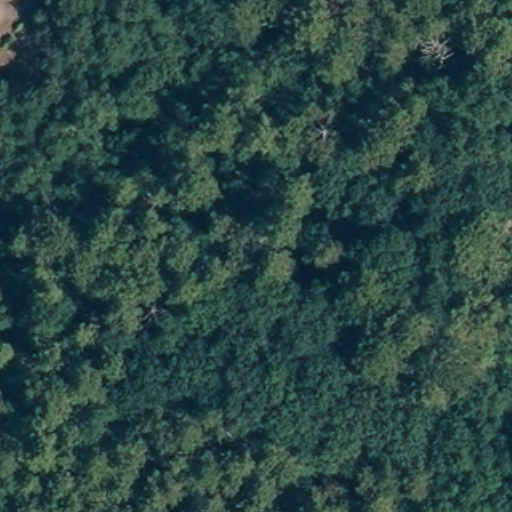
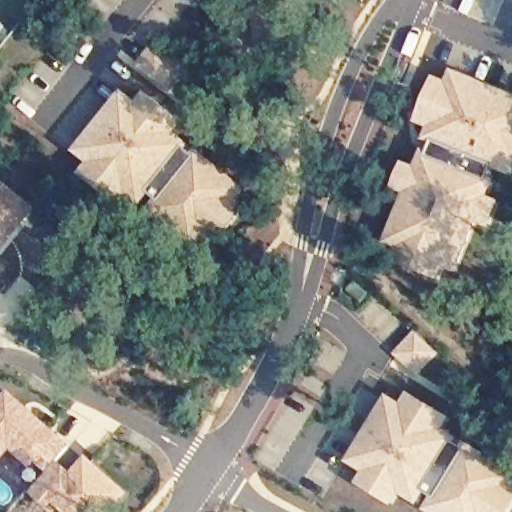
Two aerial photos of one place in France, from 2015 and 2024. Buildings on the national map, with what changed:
new [(192,68),(171,94),(135,67),(157,38),(192,68)]
new [(452,70),(512,94),(512,176),(494,169),(490,176),(497,180),(491,196),(503,201),(492,229),(478,225),(460,272),(445,267),(441,281),(395,266),(398,254),(384,250),(404,196),(394,192),(406,164),(417,169),(423,150),(430,153),(434,145),(423,141),(430,127),(417,122),(437,77),(448,82),(452,70)]
new [(139,101),(146,90),(186,121),(177,133),(248,188),(239,199),(250,206),(214,248),(194,232),(186,241),(149,214),(160,201),(150,194),(141,205),(129,195),(119,205),(80,176),(90,163),(75,151),(125,90),(139,101)]
new [(36,207),(0,255),(0,178),(36,207)]
new [(441,355),(419,377),(394,353),(417,331),(441,355)]
new [(59,460),(72,472),(86,455),(130,493),(112,512),(61,512),(53,505),(49,510),(29,491),(41,476),(11,454),(0,464),(0,399),(9,390),(72,446),(59,460)]
new [(410,392),(453,417),(446,429),(512,469),(512,512),(427,512),(425,511),(435,497),(428,492),(420,505),(401,494),(392,506),(357,485),(366,471),(348,461),(387,395),(403,404),(410,392)]

